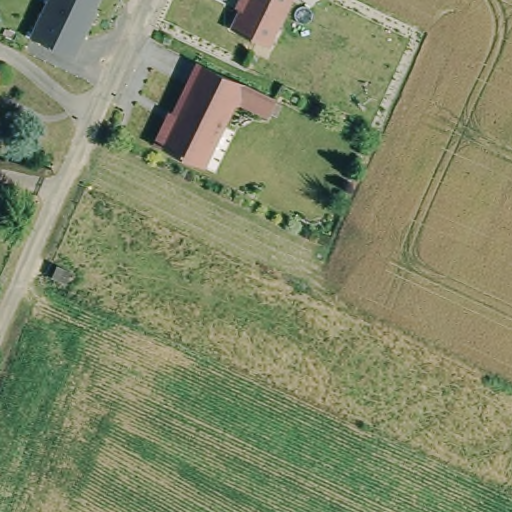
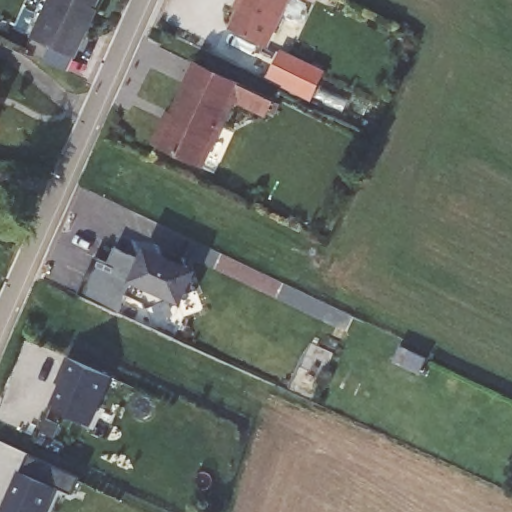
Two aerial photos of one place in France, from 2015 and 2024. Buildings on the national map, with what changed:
unchanged [(97,0),(73,54),(29,36),(45,0),(97,0)]
unchanged [(231,27),(243,4),(237,1),(237,0),(292,0),(271,48),(231,27)]
unchanged [(309,0),(318,0),(316,4),(309,0)]
new [(66,69),(44,59),(50,46),(72,56),(66,69)]
new [(325,73),(311,101),(266,79),(282,52),(325,73)]
unchanged [(204,166),(156,144),(167,119),(172,122),(204,60),(253,84),(282,97),(273,114),(244,101),(240,99),(204,166)]
unchanged [(4,76),(0,88),(0,75),(4,76)]
unchanged [(1,104),(0,105),(0,103),(1,104)]
new [(139,258),(147,244),(176,258),(184,257),(189,265),(199,271),(193,282),(196,290),(189,293),(183,306),(169,299),(148,310),(144,301),(127,293),(119,312),(79,292),(95,255),(108,262),(115,247),(139,258)]
new [(112,376),(92,425),(68,414),(70,410),(52,402),(60,383),(57,382),(68,357),(112,376)]
new [(79,477),(73,492),(58,487),(46,512),(0,512),(0,510),(19,468),(23,471),(30,453),(79,477)]

